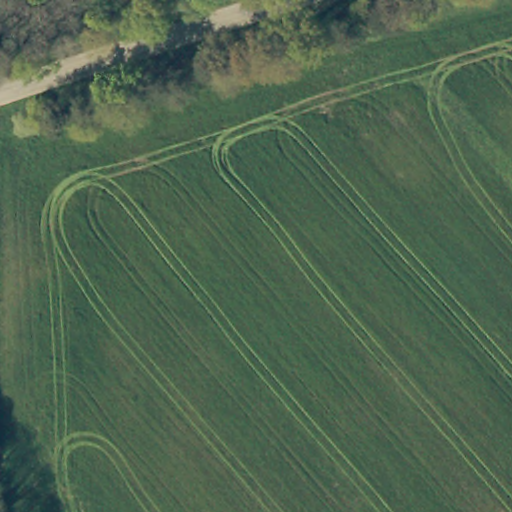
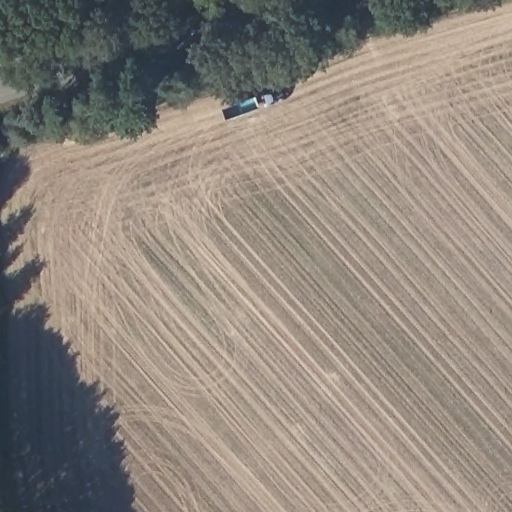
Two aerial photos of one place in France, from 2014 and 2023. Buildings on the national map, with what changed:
[]

